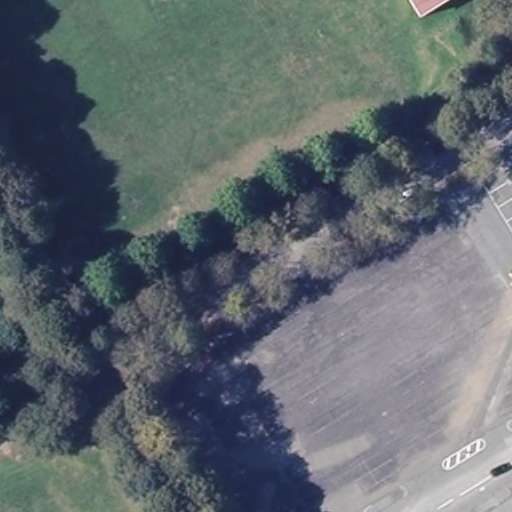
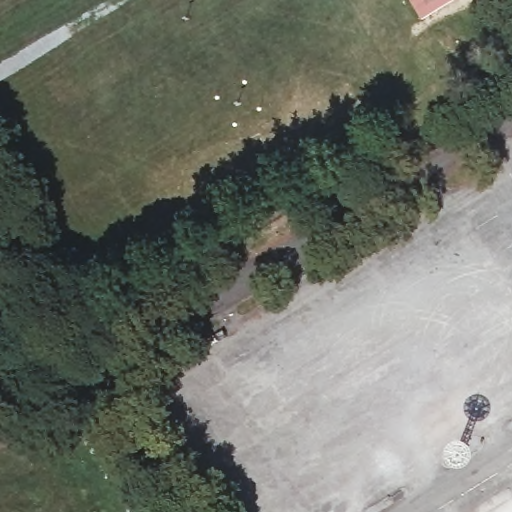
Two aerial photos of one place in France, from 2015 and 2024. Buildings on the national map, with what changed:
unchanged [(422,18),(411,0),(450,0),(422,18)]

